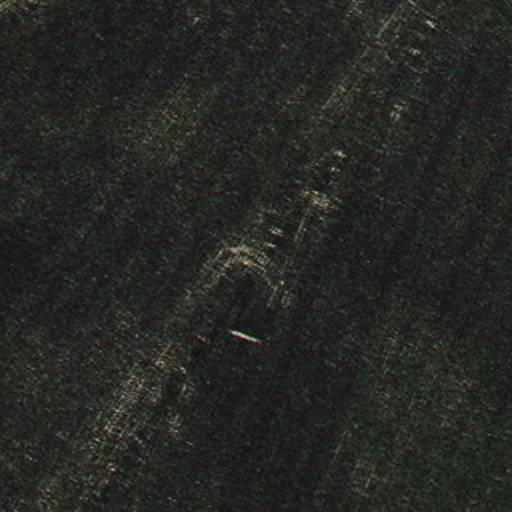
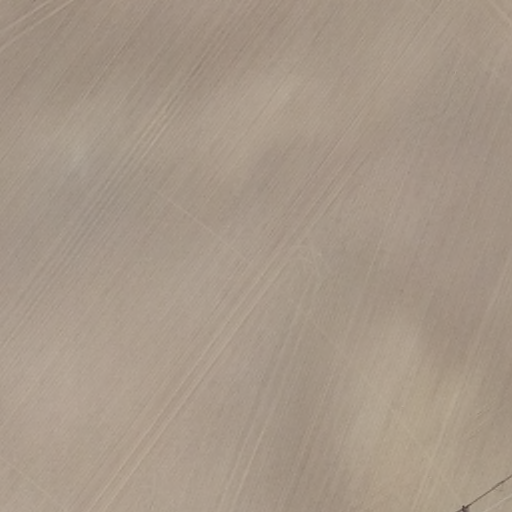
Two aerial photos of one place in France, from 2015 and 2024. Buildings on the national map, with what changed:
[]

